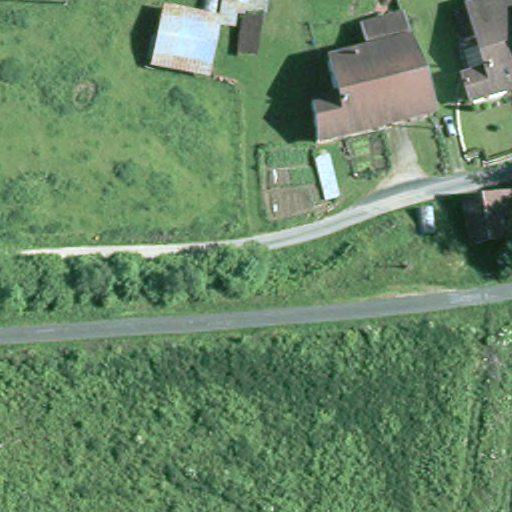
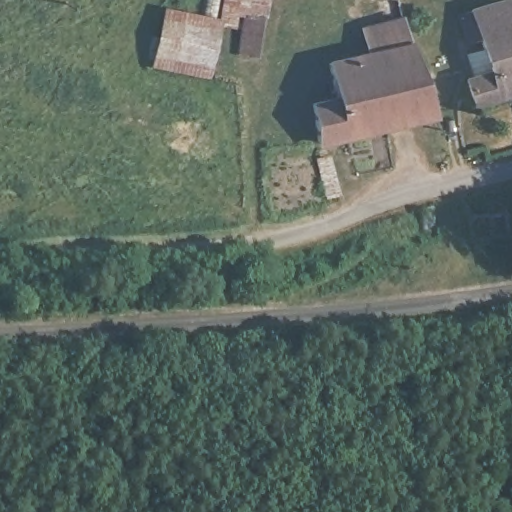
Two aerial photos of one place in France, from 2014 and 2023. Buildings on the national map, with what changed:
unchanged [(223,18),(226,0),(271,0),(261,48),(219,39),(214,82),(154,64),(164,6),(223,18)]
unchanged [(467,106),(461,82),(487,74),(479,30),(459,35),(452,10),(490,0),(512,0),(512,94),(467,106)]
unchanged [(320,152),(313,102),(334,99),(324,61),(370,51),(366,27),(410,16),(439,121),(320,152)]
unchanged [(466,247),(460,216),(457,200),(512,192),(512,239),(466,247)]

